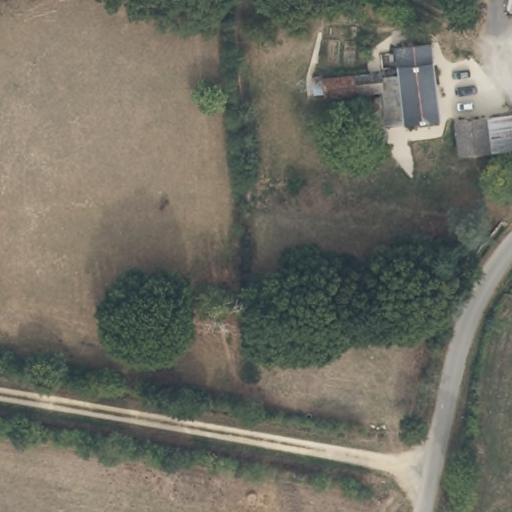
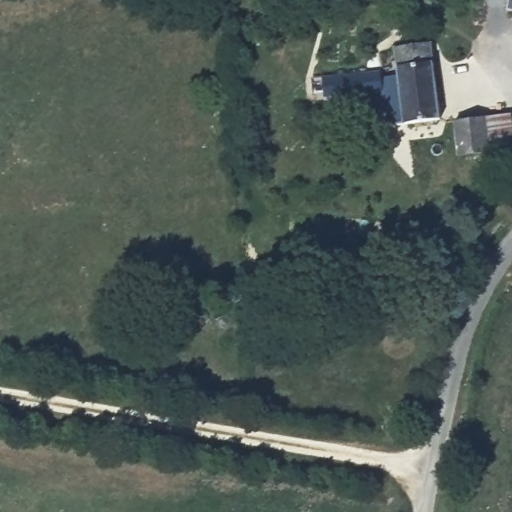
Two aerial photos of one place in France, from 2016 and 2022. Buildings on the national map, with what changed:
unchanged [(512,12),(507,10),(509,0),(512,0),(512,12)]
unchanged [(400,117),(397,91),(391,45),(430,41),(436,85),(440,114),(400,117)]
unchanged [(325,97),(312,95),(313,84),(376,80),(377,94),(325,97)]
unchanged [(458,149),(454,120),(498,115),(502,146),(458,149)]
unchanged [(500,149),(512,141),(512,152),(506,157),(500,149)]

